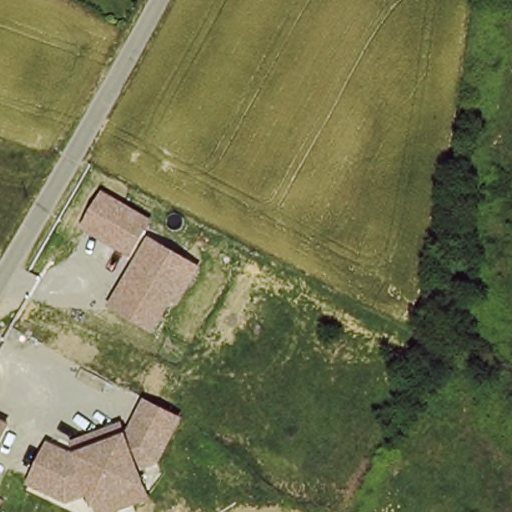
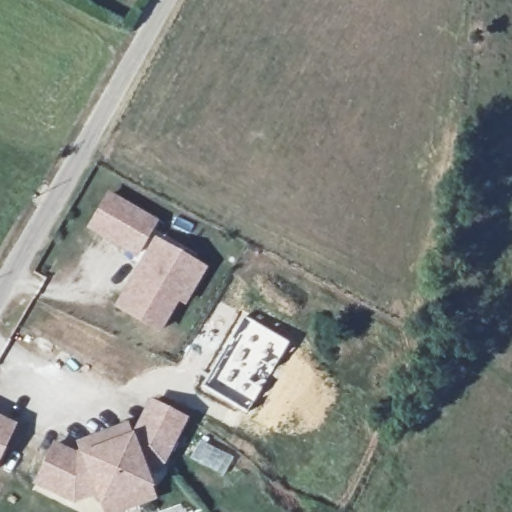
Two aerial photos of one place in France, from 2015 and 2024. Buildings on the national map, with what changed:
unchanged [(110,190),(158,218),(136,256),(89,229),(110,190)]
unchanged [(157,239),(208,269),(188,305),(180,302),(161,336),(115,308),(157,239)]
new [(216,359),(220,361),(244,320),(248,321),(249,319),(288,342),(246,413),(199,386),(216,359)]
unchanged [(80,452),(78,442),(131,424),(134,430),(151,400),(191,418),(166,468),(154,475),(162,499),(125,512),(102,512),(97,497),(76,504),(34,485),(56,441),(80,452)]
unchanged [(0,467),(0,415),(20,424),(0,467)]

